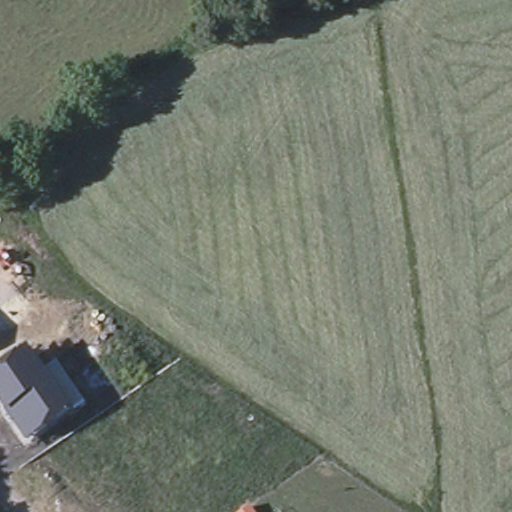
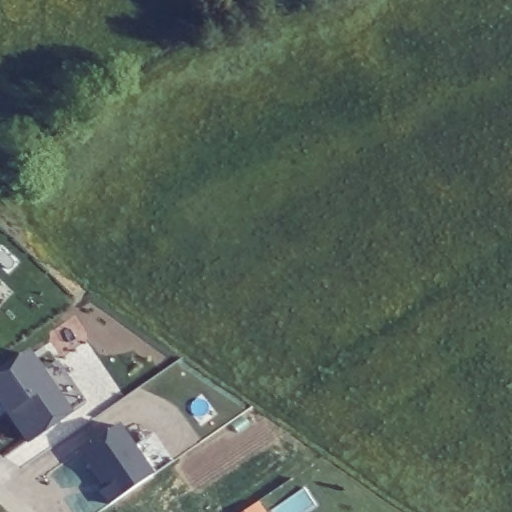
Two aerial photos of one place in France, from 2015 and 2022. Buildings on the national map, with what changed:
unchanged [(87,399),(71,411),(73,414),(28,446),(0,406),(0,370),(29,350),(42,370),(59,358),(87,399)]
new [(173,462),(153,476),(109,506),(99,492),(104,489),(78,452),(119,426),(133,447),(153,432),(173,462)]

